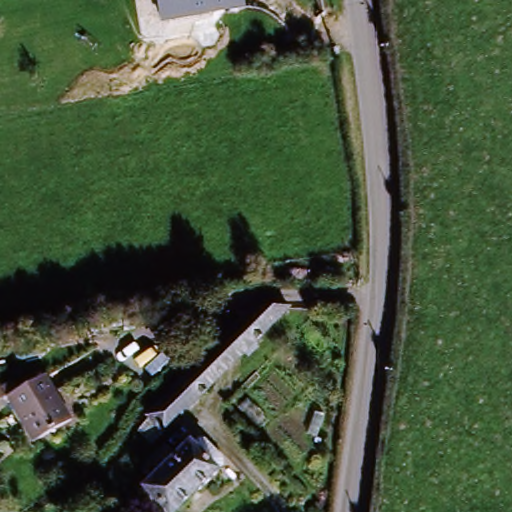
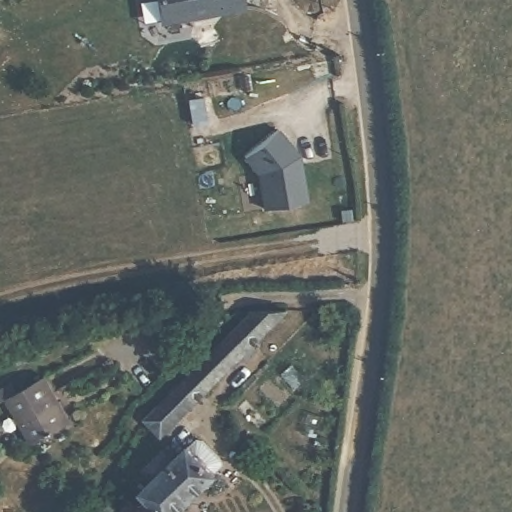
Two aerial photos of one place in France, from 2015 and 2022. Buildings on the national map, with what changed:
unchanged [(161,24),(157,0),(241,0),(243,8),(161,24)]
new [(265,209),(259,174),(245,157),(280,130),(301,156),(309,203),(265,209)]
unchanged [(261,318),(263,318),(294,317),(218,390),(221,396),(214,402),(208,399),(166,439),(149,423),(261,318)]
new [(198,349),(193,344),(212,327),(217,330),(198,349)]
unchanged [(10,352),(36,343),(41,354),(13,363),(10,352)]
unchanged [(39,387),(66,427),(48,443),(30,452),(4,407),(39,387)]
unchanged [(163,463),(173,471),(189,456),(201,464),(206,460),(215,469),(209,474),(218,484),(189,512),(153,512),(142,501),(154,490),(144,479),(163,463)]

